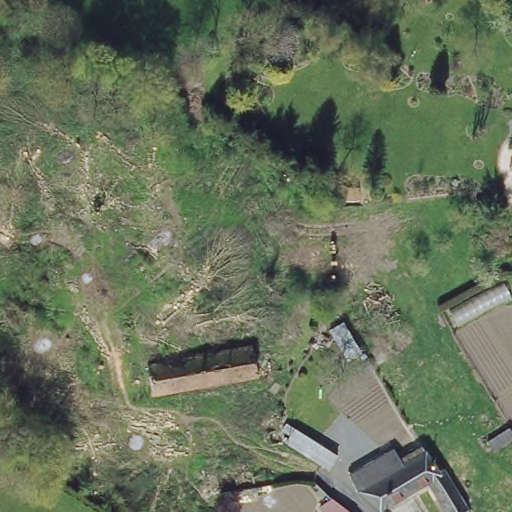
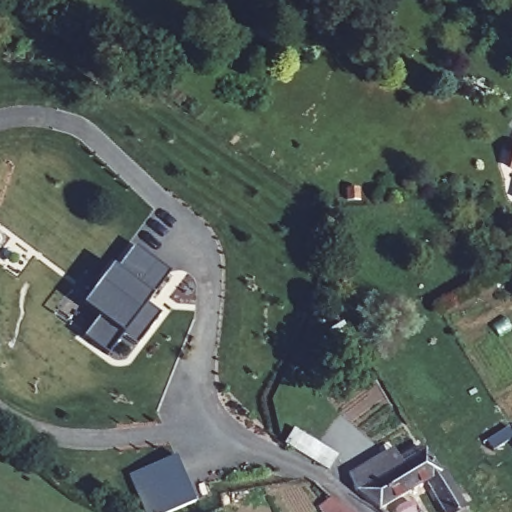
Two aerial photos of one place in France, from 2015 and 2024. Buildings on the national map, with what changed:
new [(83,338),(98,319),(82,306),(112,267),(117,270),(133,247),(168,274),(150,298),(145,305),(158,316),(135,347),(122,337),(107,356),(83,338)]
demolished [(270,414),(273,426),(278,444),(267,447),(259,417),(270,414)]
unchanged [(512,436),(505,425),(512,423),(512,436)]
unchanged [(333,457),(324,470),(282,442),(291,428),(333,457)]
unchanged [(431,463),(464,512),(456,512),(451,503),(440,509),(415,473),(363,498),(346,483),(365,473),(415,446),(427,465),(431,463)]
new [(144,512),(128,475),(176,455),(195,501),(169,512),(144,512)]
unchanged [(331,499),(356,512),(322,512),(318,508),(331,499)]

